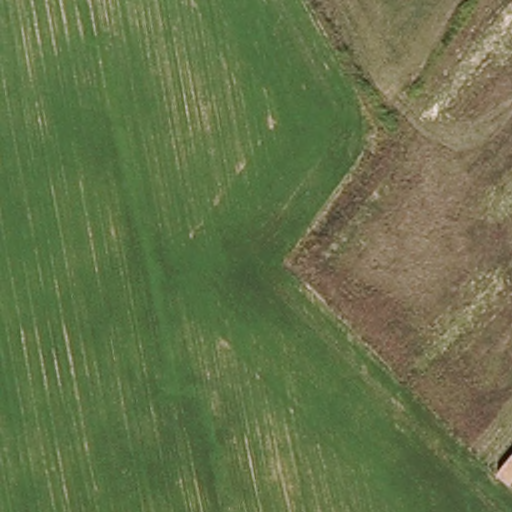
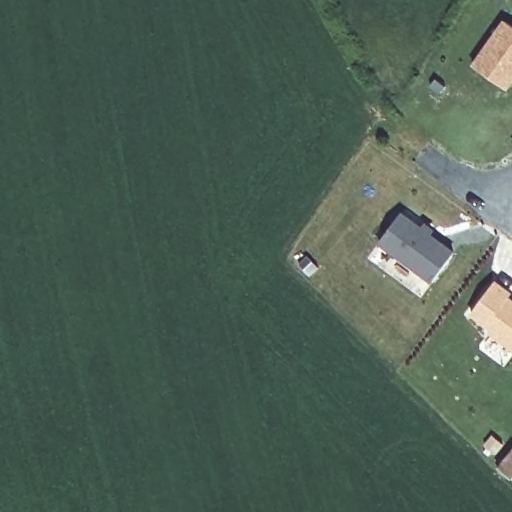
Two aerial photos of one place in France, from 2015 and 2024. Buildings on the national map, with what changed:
new [(500,20),(512,28),(512,72),(501,87),(468,63),(500,20)]
new [(399,212),(451,252),(430,281),(377,241),(399,212)]
new [(491,281),(507,293),(505,297),(512,303),(512,350),(486,331),(489,328),(468,312),(491,281)]
unchanged [(500,471),(512,456),(512,481),(511,481),(500,471)]

